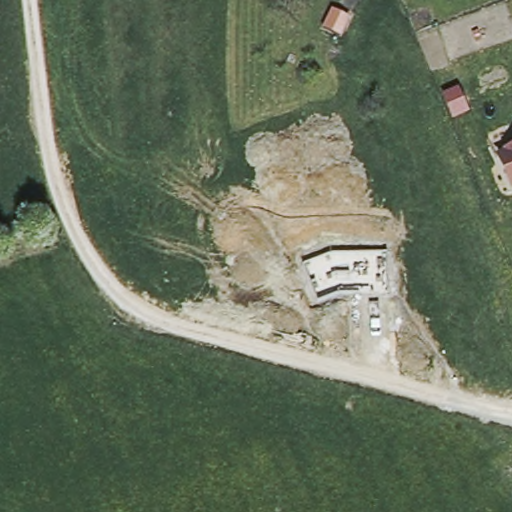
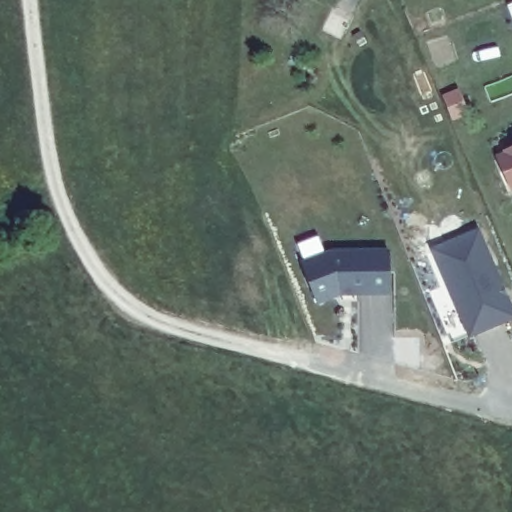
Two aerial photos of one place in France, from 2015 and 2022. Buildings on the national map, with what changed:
unchanged [(508,155),(507,152),(512,150),(512,186),(500,158),(508,155)]
new [(512,321),(469,338),(430,249),(479,229),(512,305),(512,321)]
new [(390,295),(340,296),(317,306),(300,261),(305,260),(299,245),(318,236),(325,251),(331,250),(390,248),(390,295)]

